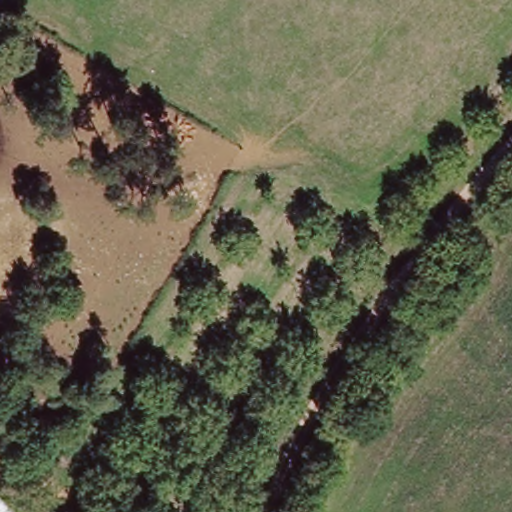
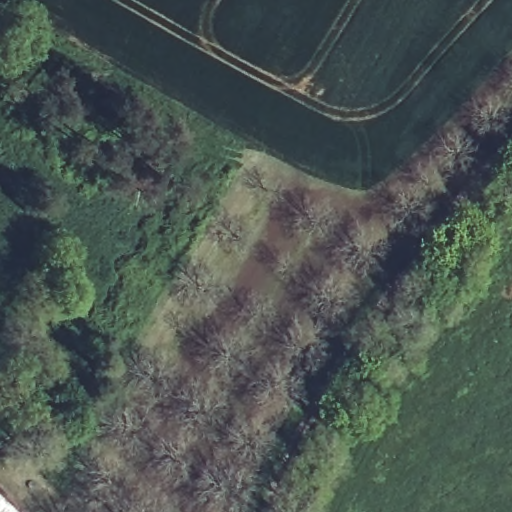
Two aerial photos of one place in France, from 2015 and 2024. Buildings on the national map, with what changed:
unchanged [(309,435),(317,418),(334,429),(324,445),(309,435)]
unchanged [(0,512),(0,503),(10,512),(0,512)]

